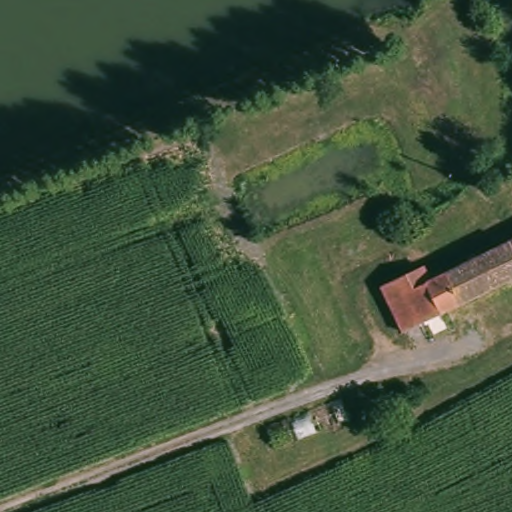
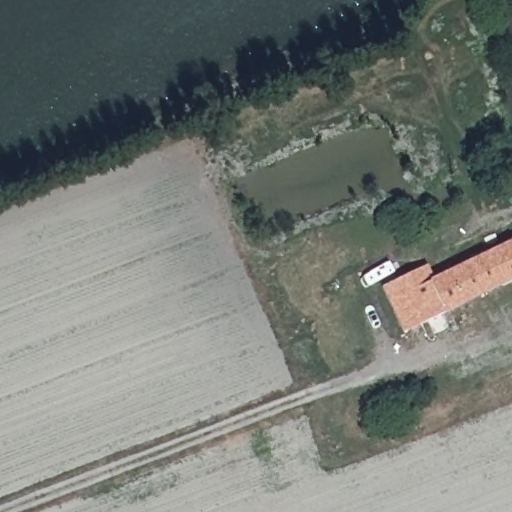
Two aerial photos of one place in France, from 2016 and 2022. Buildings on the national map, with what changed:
unchanged [(445,313),(431,325),(412,333),(401,315),(388,320),(377,296),(407,280),(414,290),(512,239),(512,278),(445,313)]

